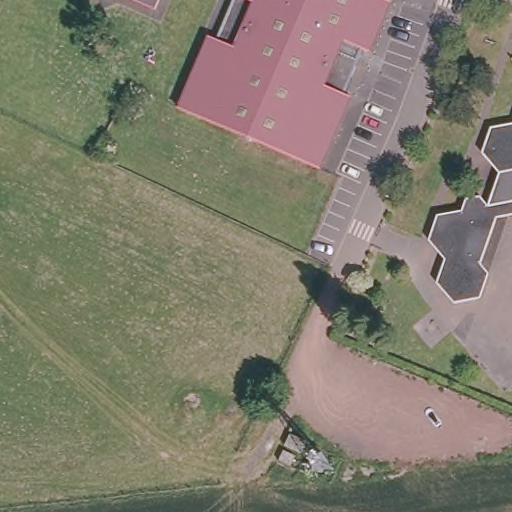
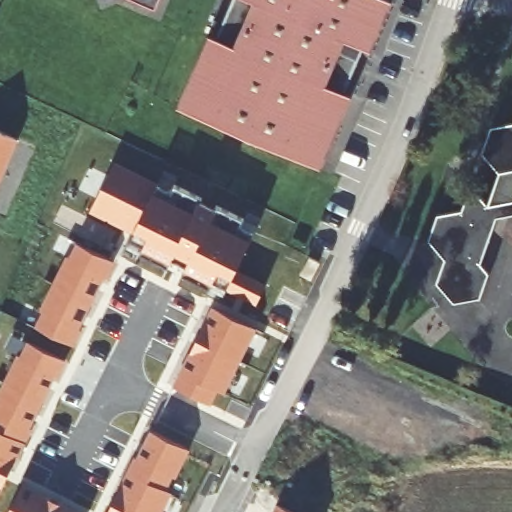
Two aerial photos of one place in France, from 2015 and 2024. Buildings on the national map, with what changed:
unchanged [(149,6),(135,0),(161,0),(160,1),(149,6)]
unchanged [(367,51),(360,48),(342,91),(348,94),(316,169),(170,106),(201,32),(206,34),(221,0),(387,0),(389,0),(367,51)]
unchanged [(485,260),(493,272),(484,294),(461,299),(443,281),(452,255),(435,237),(444,212),(468,209),(472,195),(484,194),(494,205),(502,170),(487,149),(496,125),(512,123),(512,214),(501,216),(485,260)]
new [(18,139),(0,184),(0,131),(18,139)]
new [(157,183),(173,190),(176,185),(241,219),(238,226),(253,234),(238,265),(268,284),(259,302),(217,278),(212,287),(182,271),(189,258),(176,252),(171,263),(143,249),(149,236),(90,210),(116,160),(157,183)]
new [(70,257),(76,242),(117,260),(109,277),(105,275),(80,326),(84,329),(76,345),(35,327),(43,311),(39,309),(66,255),(70,257)]
new [(258,329),(226,393),(218,390),(211,403),(173,384),(211,305),(258,329)]
new [(69,359),(59,379),(56,378),(0,496),(0,390),(17,353),(21,355),(28,341),(69,359)]
new [(191,449),(176,479),(173,476),(168,487),(173,490),(162,512),(107,512),(136,453),(139,454),(151,429),(191,449)]
demolished [(285,446),(291,434),(306,443),(300,455),(285,446)]
demolished [(283,451),(294,457),(288,467),(277,460),(283,451)]
new [(80,512),(9,512),(23,483),(80,512)]
new [(292,512),(274,512),(278,504),(292,512)]

